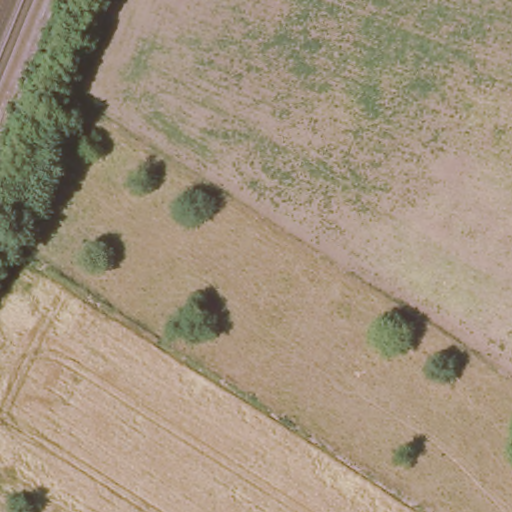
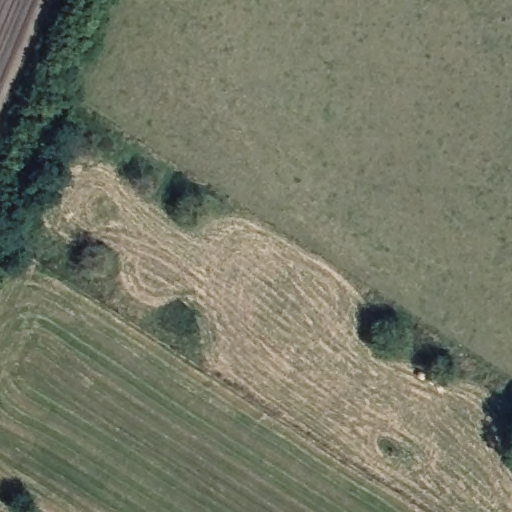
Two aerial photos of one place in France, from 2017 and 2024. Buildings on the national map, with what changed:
[]

